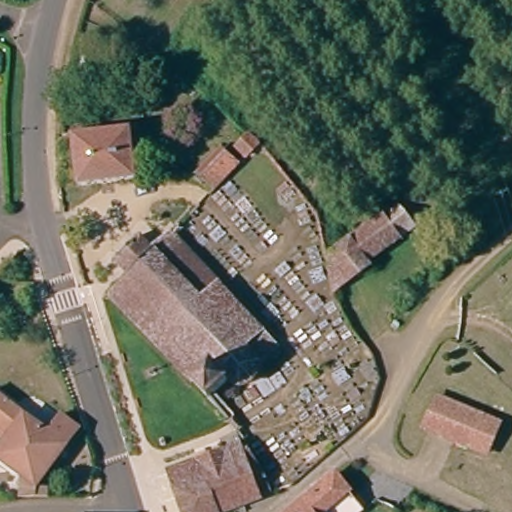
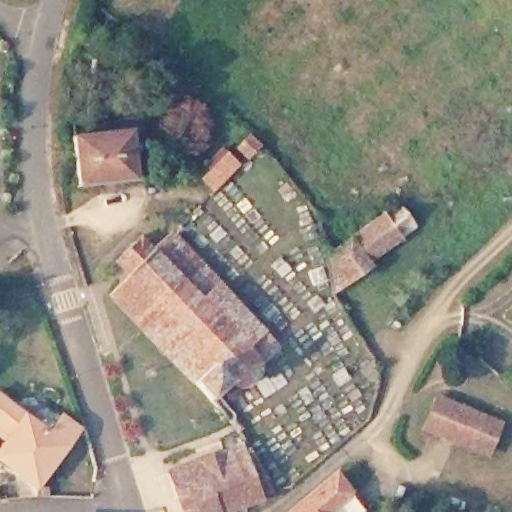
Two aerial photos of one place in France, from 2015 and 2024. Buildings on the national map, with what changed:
unchanged [(68,41),(78,42),(78,64),(66,62),(68,41)]
unchanged [(66,126),(81,124),(86,144),(136,135),(144,177),(75,189),(66,126)]
unchanged [(209,171),(237,141),(247,153),(218,181),(209,171)]
unchanged [(398,199),(416,221),(401,233),(359,264),(373,283),(339,309),(326,255),(382,212),(398,199)]
unchanged [(246,394),(232,393),(220,386),(203,401),(137,330),(103,294),(126,272),(109,255),(135,229),(152,246),(170,228),(277,348),(263,359),(260,384),(246,394)]
unchanged [(424,268),(435,256),(449,269),(438,280),(424,268)]
unchanged [(0,496),(0,478),(23,471),(0,455),(0,391),(28,412),(40,396),(80,421),(38,481),(29,494),(24,494),(0,496)]
unchanged [(489,450),(474,445),(426,428),(437,398),(485,415),(500,420),(489,450)]
unchanged [(234,443),(244,439),(249,453),(253,452),(265,471),(269,492),(267,496),(222,512),(189,512),(177,479),(176,479),(172,465),(208,452),(234,443)]
unchanged [(358,512),(287,512),(333,470),(366,504),(358,512)]

